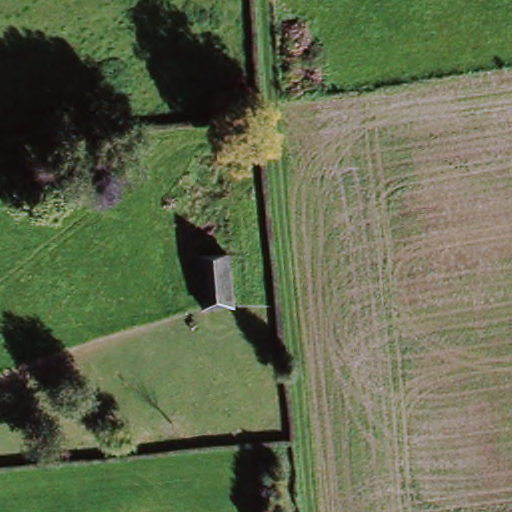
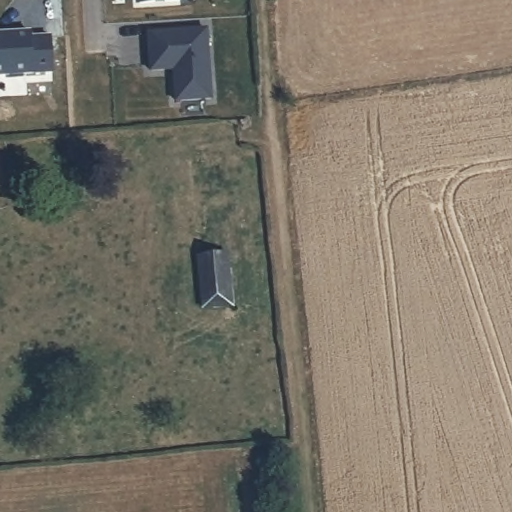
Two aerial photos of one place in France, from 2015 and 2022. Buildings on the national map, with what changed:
new [(135,3),(135,0),(179,0),(179,1),(135,3)]
new [(206,27),(210,96),(174,99),(171,69),(150,70),(145,29),(206,27)]
new [(32,29),(33,35),(50,34),(55,72),(0,75),(0,31),(32,29)]
demolished [(48,74),(48,111),(0,112),(0,75),(48,74)]
unchanged [(232,309),(200,314),(195,261),(228,258),(232,309)]

